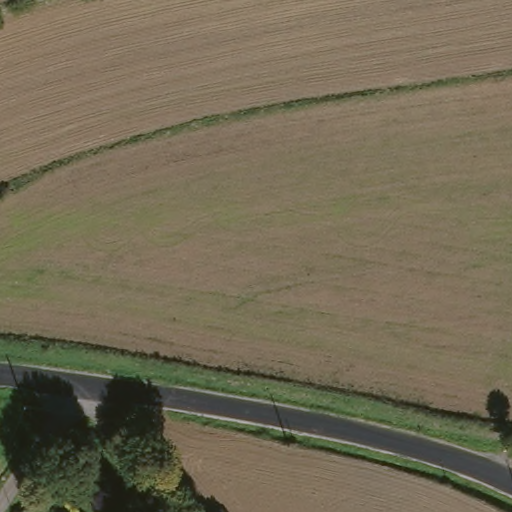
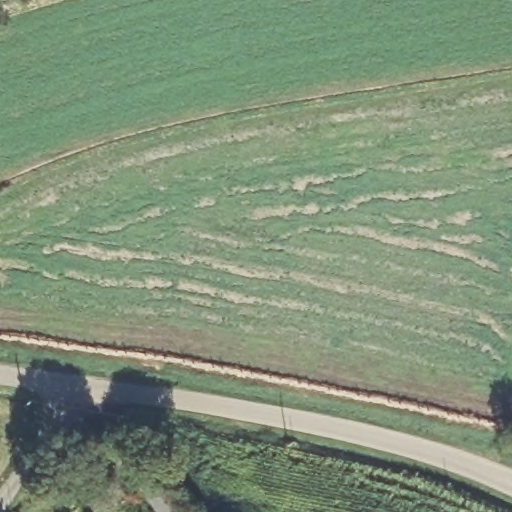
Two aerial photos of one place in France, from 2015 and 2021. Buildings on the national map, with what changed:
[]

